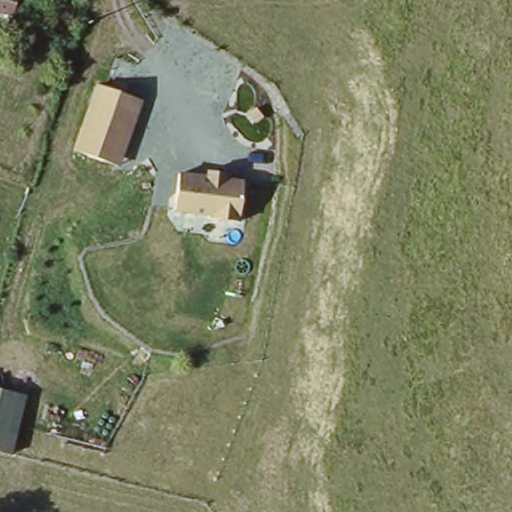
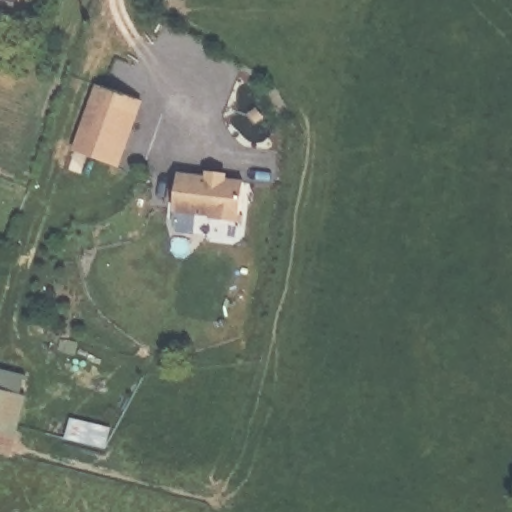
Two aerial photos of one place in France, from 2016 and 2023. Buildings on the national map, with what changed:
unchanged [(141,100),(117,166),(71,150),(95,85),(141,100)]
unchanged [(244,184),(240,221),(175,215),(180,175),(244,184)]
unchanged [(0,451),(0,389),(25,396),(12,454),(0,451)]

